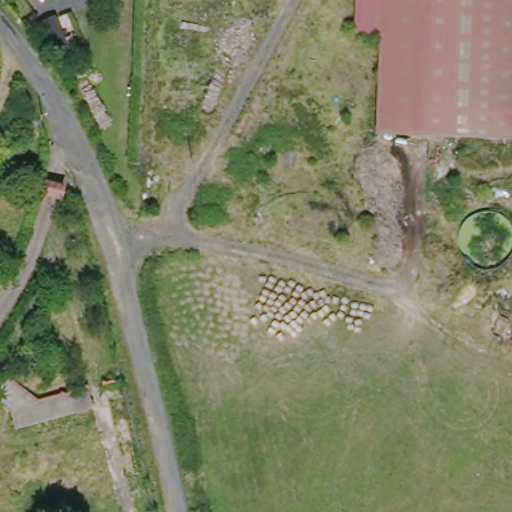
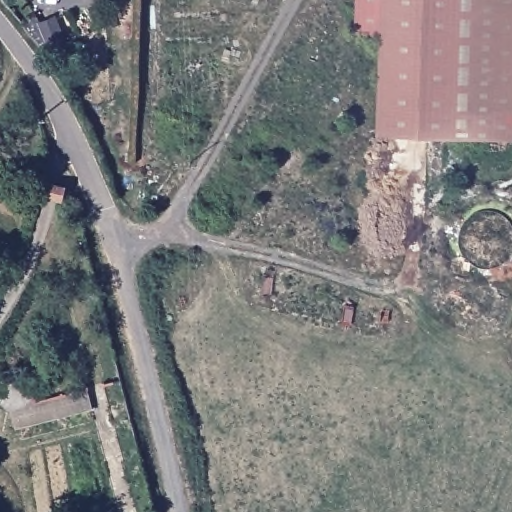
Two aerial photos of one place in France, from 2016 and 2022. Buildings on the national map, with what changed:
unchanged [(375,1),(360,0),(455,0),(452,136),(371,131),(375,1)]
unchanged [(455,0),(512,0),(512,137),(452,136),(455,0)]
unchanged [(8,433),(2,413),(0,411),(0,387),(3,381),(31,401),(83,387),(88,409),(8,433)]

